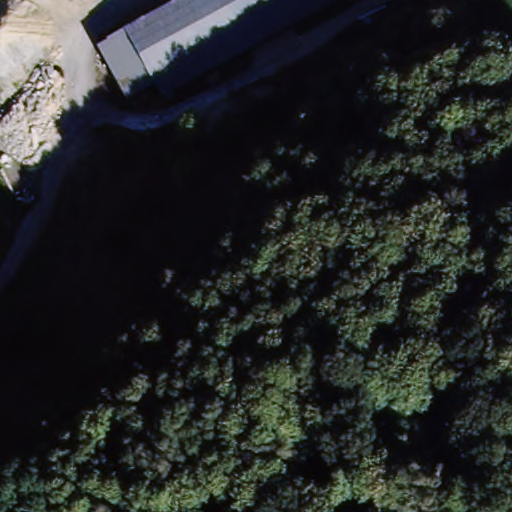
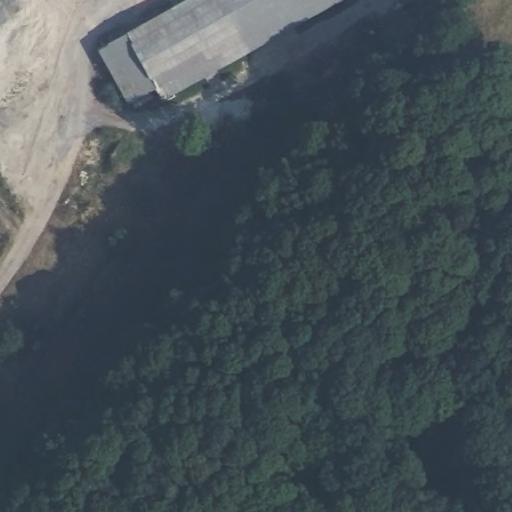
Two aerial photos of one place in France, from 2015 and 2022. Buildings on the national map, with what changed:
unchanged [(125,106),(96,52),(193,0),(323,0),(125,106)]

